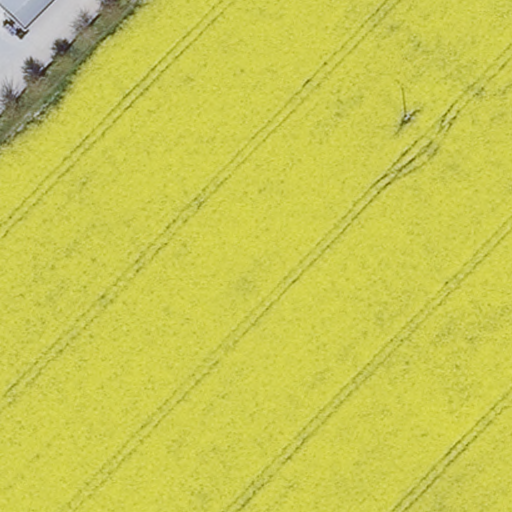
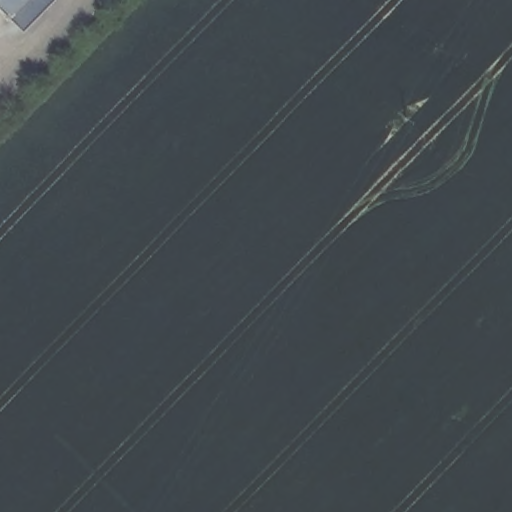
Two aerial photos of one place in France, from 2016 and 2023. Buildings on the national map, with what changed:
unchanged [(0,10),(0,0),(55,0),(25,35),(0,10)]

